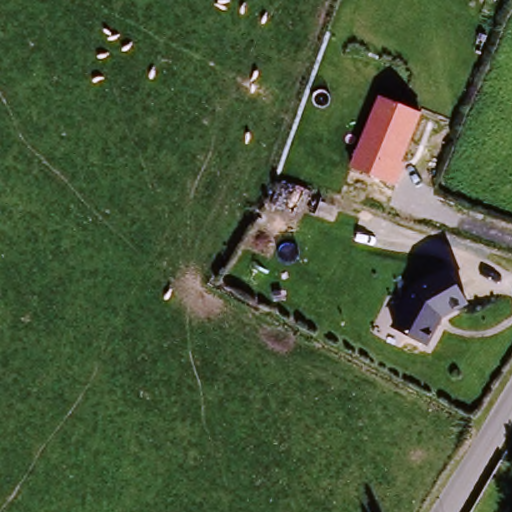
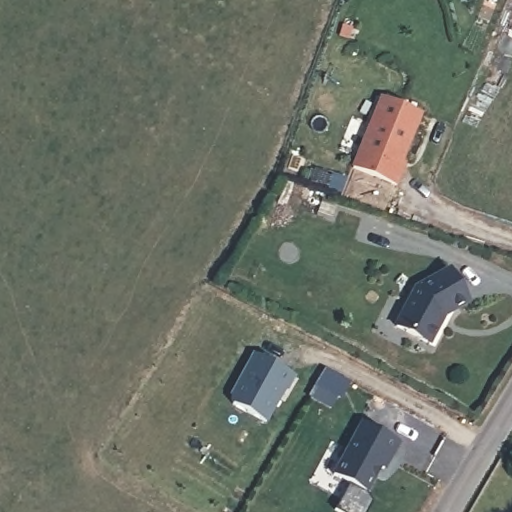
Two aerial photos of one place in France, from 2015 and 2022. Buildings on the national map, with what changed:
unchanged [(379,96),(420,113),(402,162),(406,163),(398,187),(350,166),(379,96)]
unchanged [(391,324),(414,281),(452,267),(468,305),(443,319),(430,347),(391,324)]
new [(293,378),(285,392),(283,391),(264,425),(232,406),(230,400),(254,356),(293,378)]
new [(341,399),(317,385),(325,370),(350,383),(341,399)]
new [(398,443),(383,471),(380,469),(367,495),(333,477),(362,423),(398,443)]

